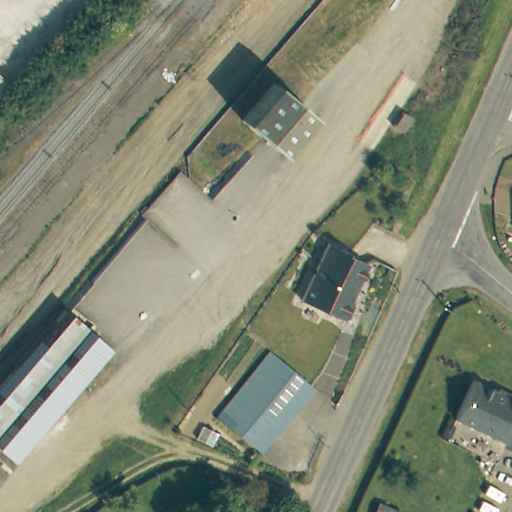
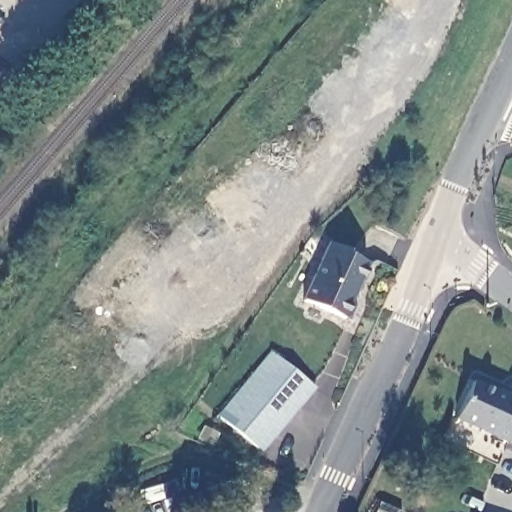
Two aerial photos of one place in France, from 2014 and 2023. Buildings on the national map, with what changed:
unchanged [(11,86),(0,96),(0,76),(11,86)]
demolished [(276,83),(317,118),(285,155),(244,119),(276,83)]
demolished [(391,125),(400,110),(409,116),(401,130),(391,125)]
demolished [(411,240),(372,224),(395,196),(403,200),(425,208),(411,240)]
unchanged [(327,241),(344,248),(342,252),(346,254),(367,262),(351,298),(354,303),(347,316),(338,316),(305,301),(299,298),(327,241)]
demolished [(114,348),(0,480),(0,386),(67,308),(114,348)]
unchanged [(217,415),(270,352),(312,386),(258,450),(217,415)]
unchanged [(477,384),(510,398),(512,392),(512,442),(461,420),(477,384)]

